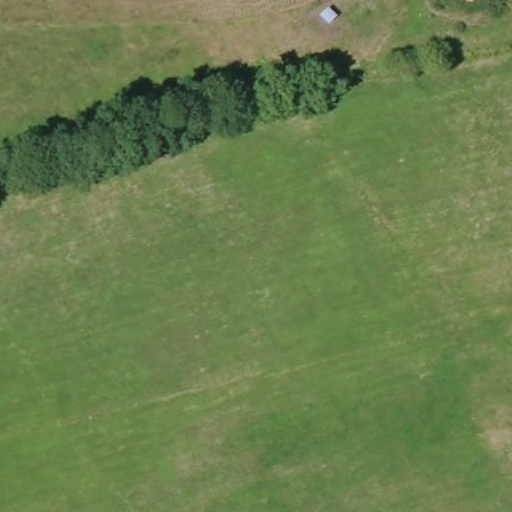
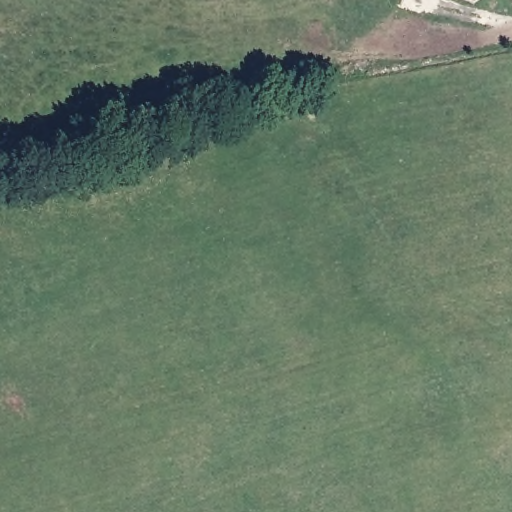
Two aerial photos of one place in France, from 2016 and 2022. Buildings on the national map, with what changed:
[]

